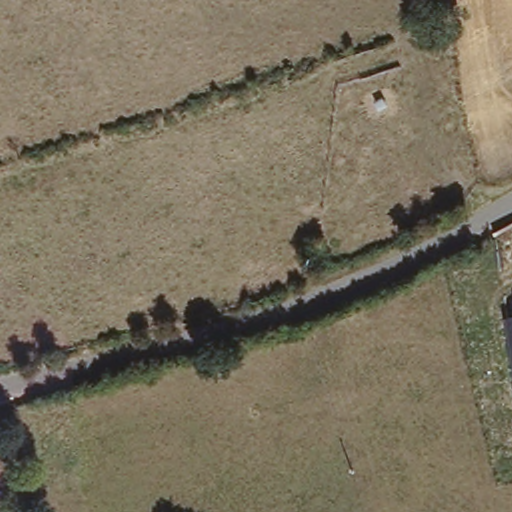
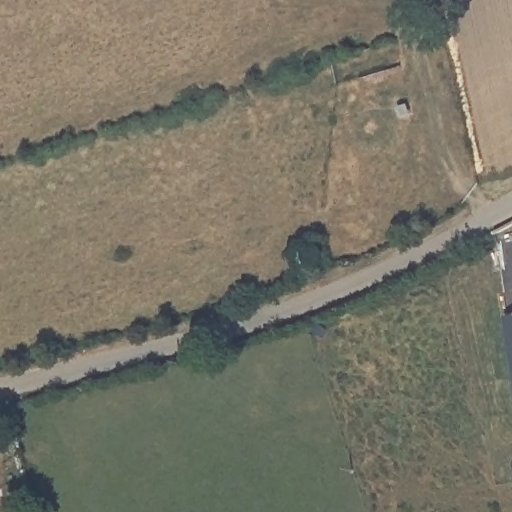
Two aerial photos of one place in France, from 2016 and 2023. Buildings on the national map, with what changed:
unchanged [(512,315),(512,336),(509,315),(512,315)]

